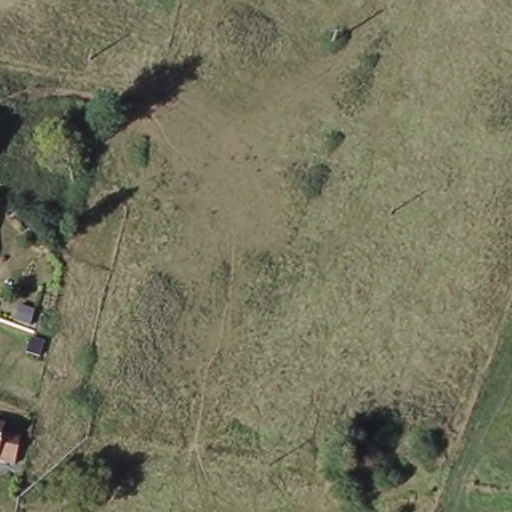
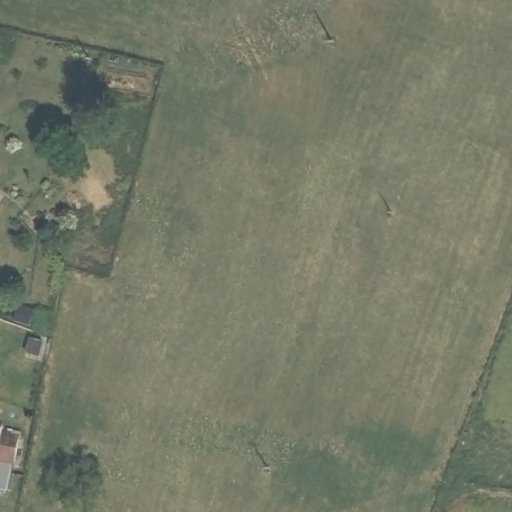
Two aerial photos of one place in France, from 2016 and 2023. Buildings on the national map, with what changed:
unchanged [(8,422),(8,428),(26,432),(22,449),(8,444),(3,456),(0,455),(0,420),(8,422)]

